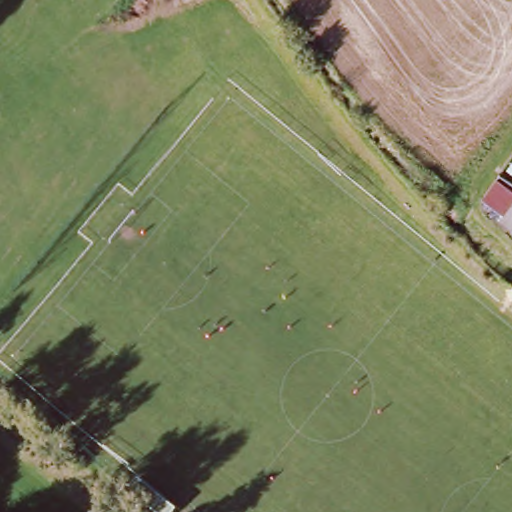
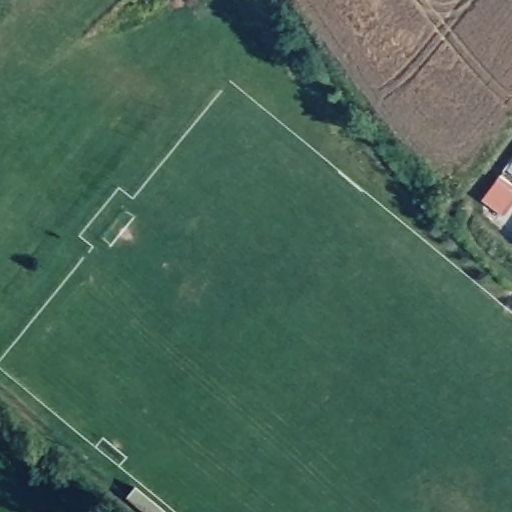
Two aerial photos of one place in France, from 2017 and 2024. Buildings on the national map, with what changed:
unchanged [(512,182),(512,208),(507,215),(485,202),(503,176),(512,182)]

